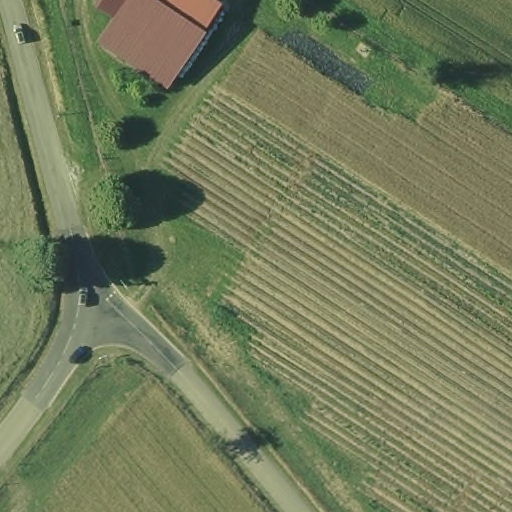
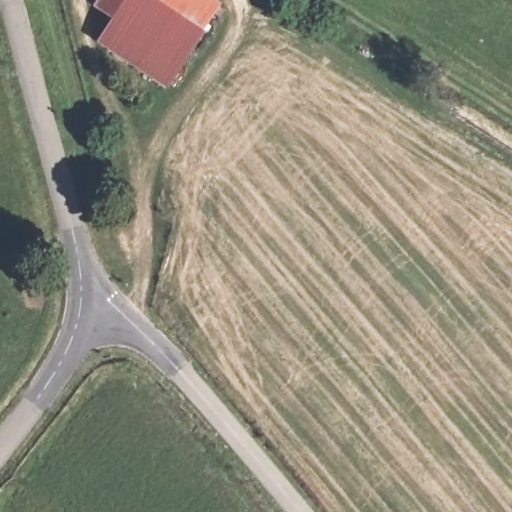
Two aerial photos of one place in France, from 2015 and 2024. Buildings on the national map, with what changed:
unchanged [(95,5),(98,0),(221,0),(230,6),(167,93),(95,48),(113,20),(95,5)]

